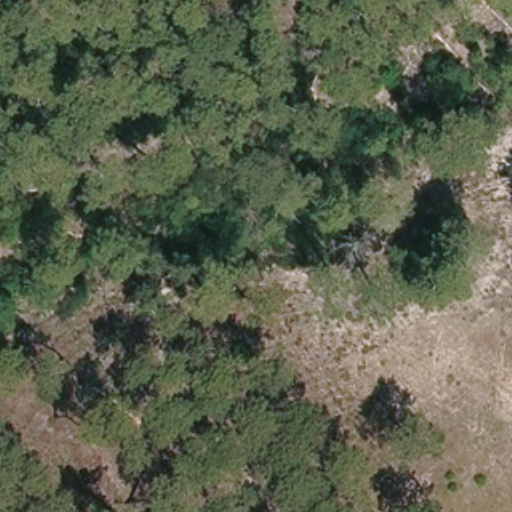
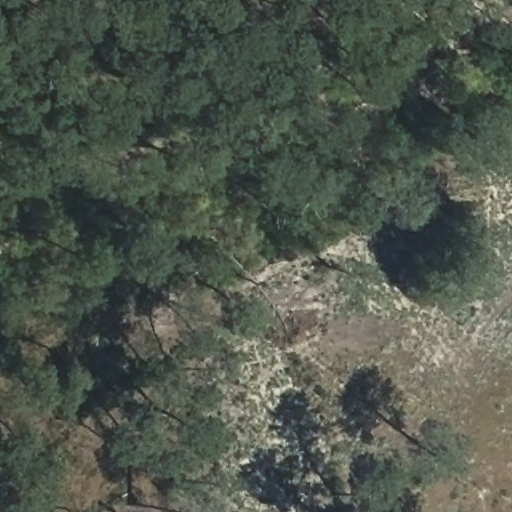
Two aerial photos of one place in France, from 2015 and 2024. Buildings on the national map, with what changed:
[]

